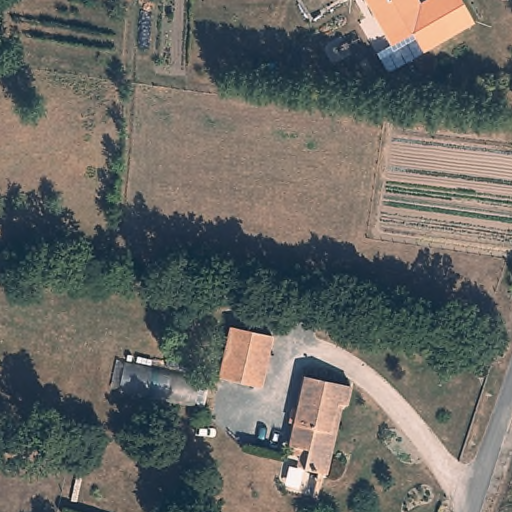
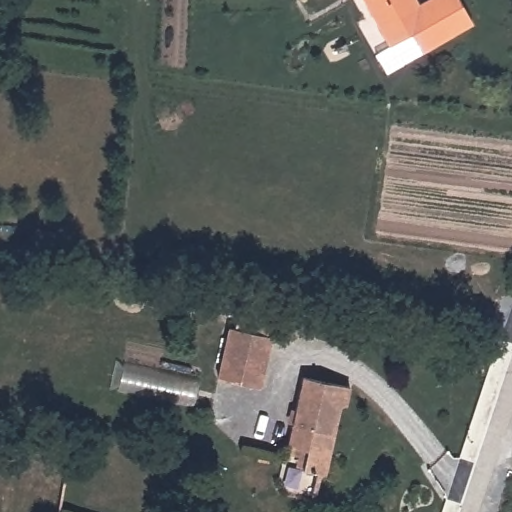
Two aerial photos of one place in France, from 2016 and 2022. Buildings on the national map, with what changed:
unchanged [(427,0),(456,0),(471,27),(422,54),(410,33),(390,43),(366,0),(415,0),(417,6),(427,0)]
unchanged [(273,340),(263,394),(223,385),(233,331),(273,340)]
unchanged [(211,383),(204,408),(109,388),(115,360),(211,383)]
unchanged [(345,411),(341,411),(326,481),(304,477),(308,455),(290,451),(303,381),(350,391),(345,411)]

